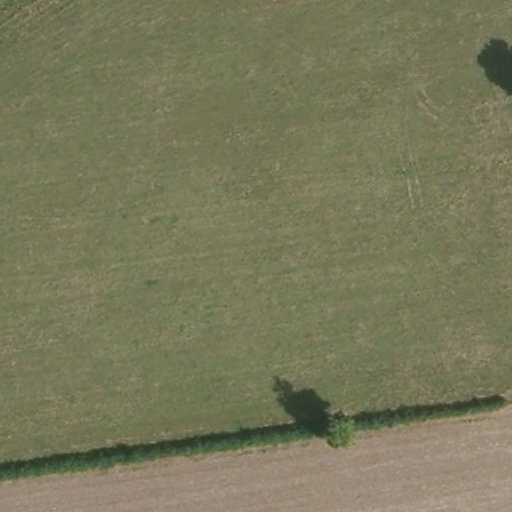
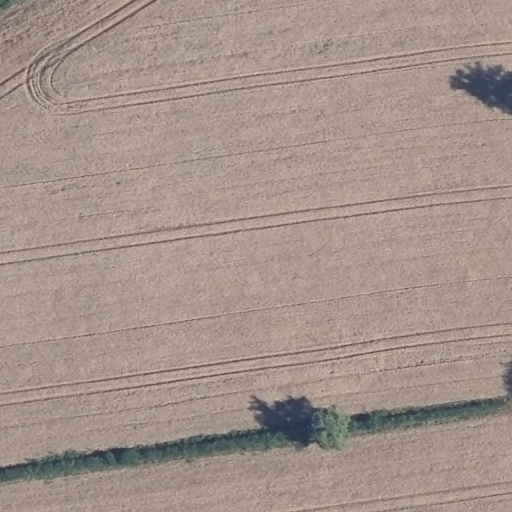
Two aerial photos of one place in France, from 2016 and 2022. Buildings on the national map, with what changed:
[]

